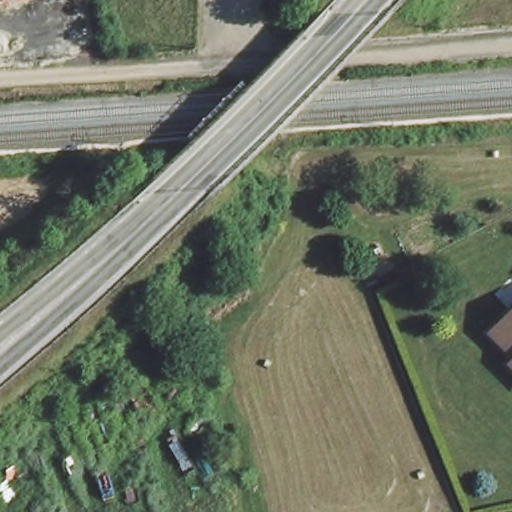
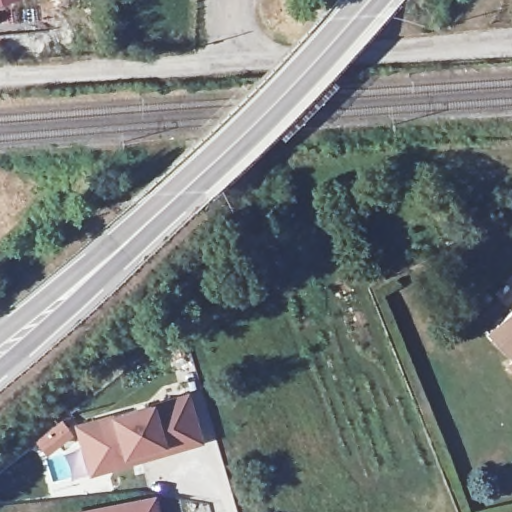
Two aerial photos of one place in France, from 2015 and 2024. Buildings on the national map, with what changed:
unchanged [(8,0),(0,3),(0,0),(8,0)]
unchanged [(512,307),(512,353),(490,329),(512,307)]
unchanged [(512,355),(512,361),(509,357),(512,355)]
new [(187,395),(202,443),(90,476),(77,427),(187,395)]
new [(157,495),(160,512),(74,512),(157,495)]

